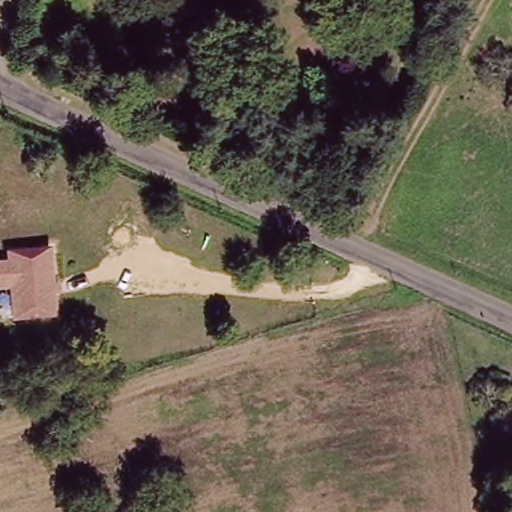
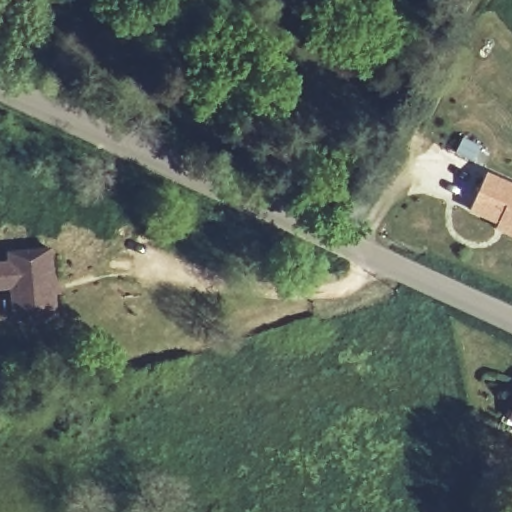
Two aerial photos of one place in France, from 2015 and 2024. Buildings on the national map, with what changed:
new [(512,182),(512,236),(495,229),(497,224),(468,212),(486,172),(512,182)]
unchanged [(5,247),(47,245),(52,313),(9,316),(7,284),(6,258),(5,247)]
unchanged [(6,258),(7,284),(0,284),(0,258),(6,258)]
unchanged [(512,411),(512,417),(510,416),(512,411)]

